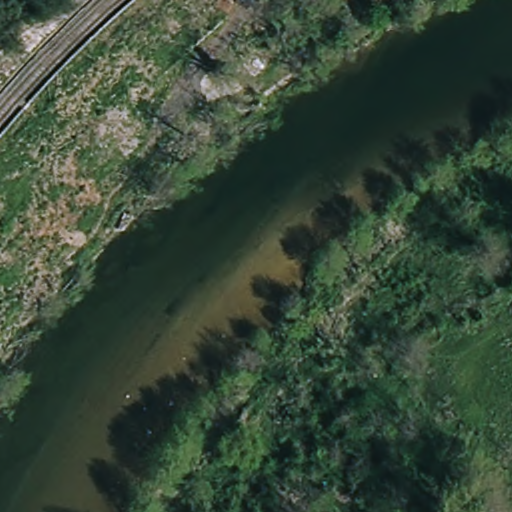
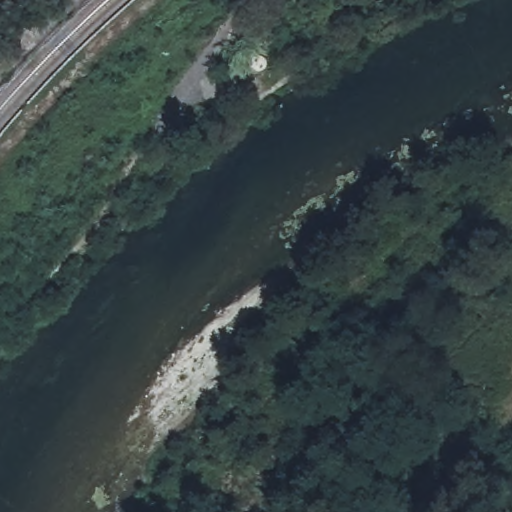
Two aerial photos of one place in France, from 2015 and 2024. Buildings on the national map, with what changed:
[]

